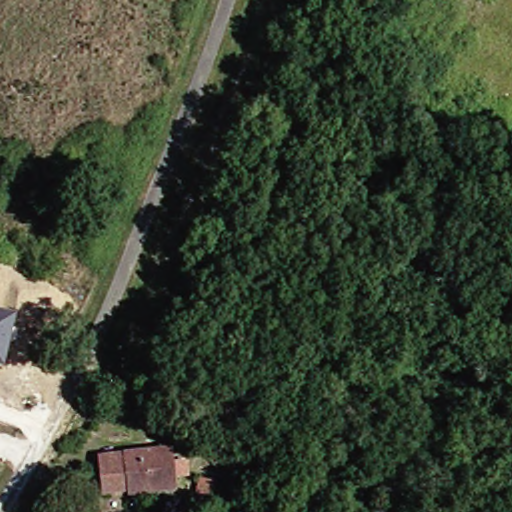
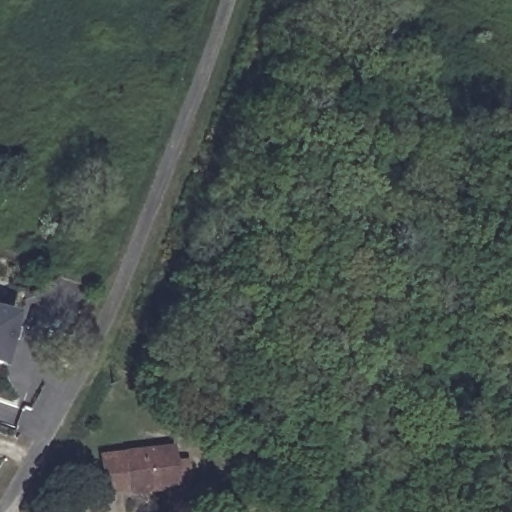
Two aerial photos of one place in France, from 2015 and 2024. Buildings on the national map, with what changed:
unchanged [(16,314),(4,368),(0,367),(0,310),(16,314)]
unchanged [(99,455),(170,447),(174,487),(127,492),(127,485),(102,487),(99,455)]

